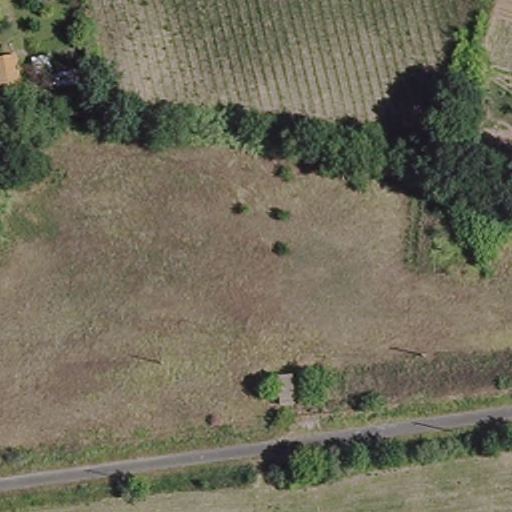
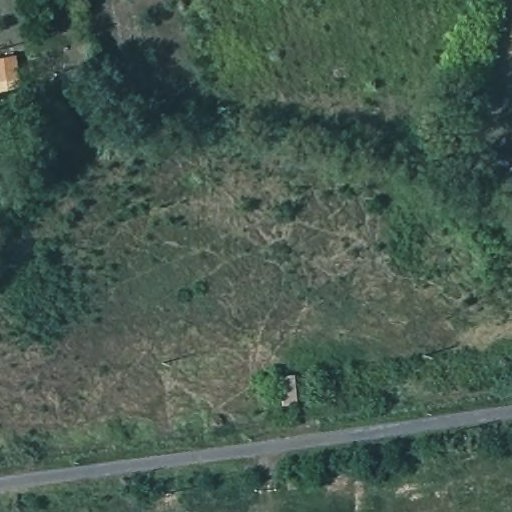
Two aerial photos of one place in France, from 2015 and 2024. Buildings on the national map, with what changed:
unchanged [(19,94),(0,96),(0,53),(17,52),(19,94)]
unchanged [(293,400),(279,400),(279,389),(293,389),(293,400)]

